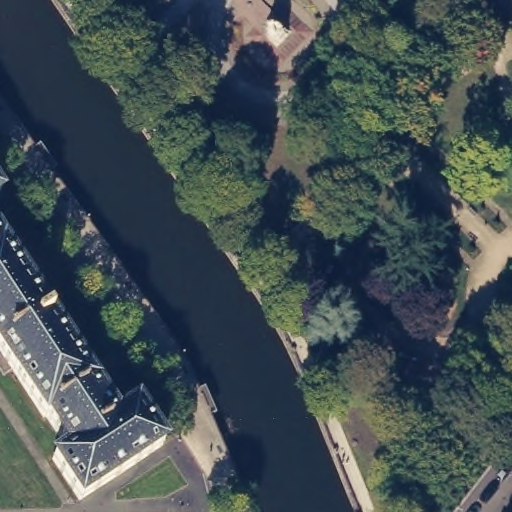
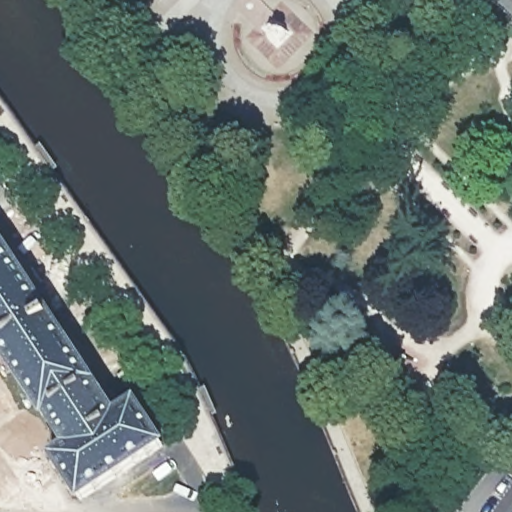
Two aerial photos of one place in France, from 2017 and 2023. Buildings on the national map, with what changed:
unchanged [(0,345),(0,237),(116,413),(135,400),(162,441),(80,495),(53,454),(68,444),(65,440),(46,410),(44,412),(0,345)]
unchanged [(455,445),(455,449),(451,448),(445,452),(437,441),(440,432),(451,424),(455,431),(458,432),(457,435),(461,441),(455,445)]

